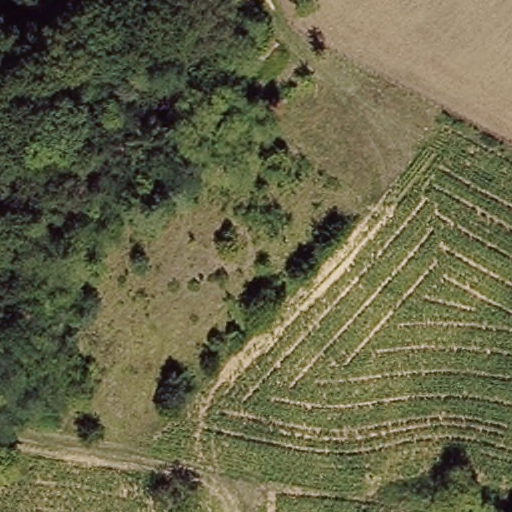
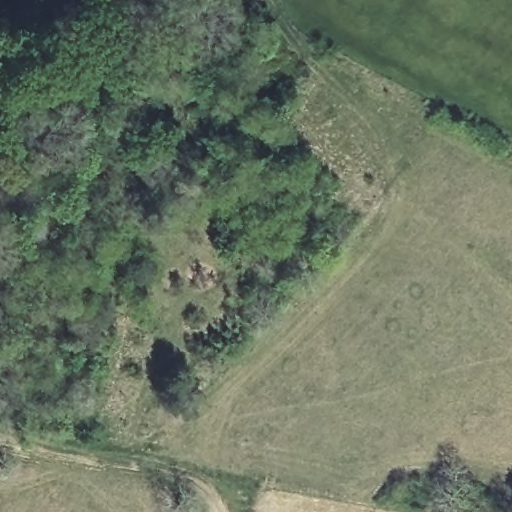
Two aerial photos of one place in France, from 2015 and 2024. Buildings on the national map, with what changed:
unchanged [(283,45),(265,66),(249,52),(267,31),(283,45)]

